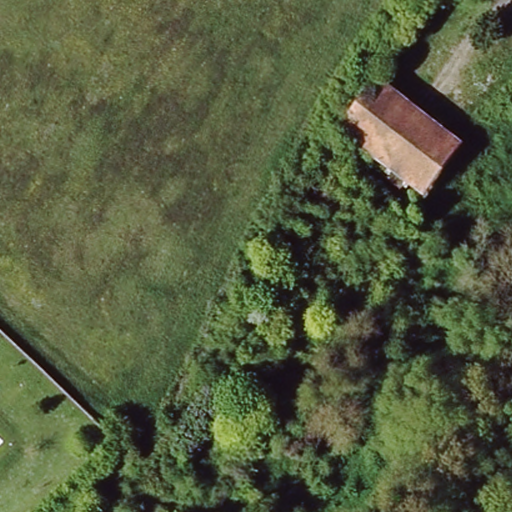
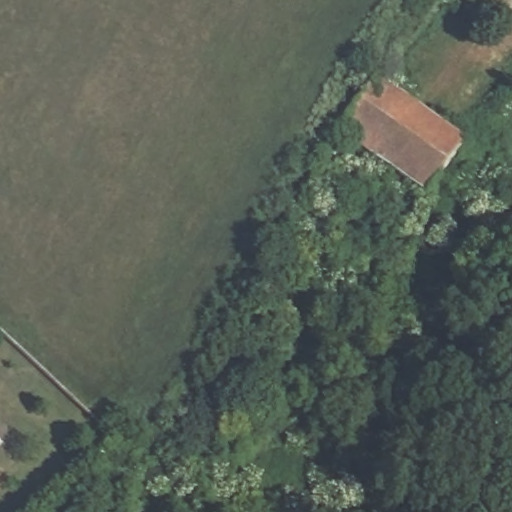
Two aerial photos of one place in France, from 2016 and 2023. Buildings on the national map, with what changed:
unchanged [(456,1),(454,0),(457,0),(456,1)]
unchanged [(470,140),(432,190),(415,179),(407,189),(392,176),(398,167),(345,125),(383,70),(470,140)]

